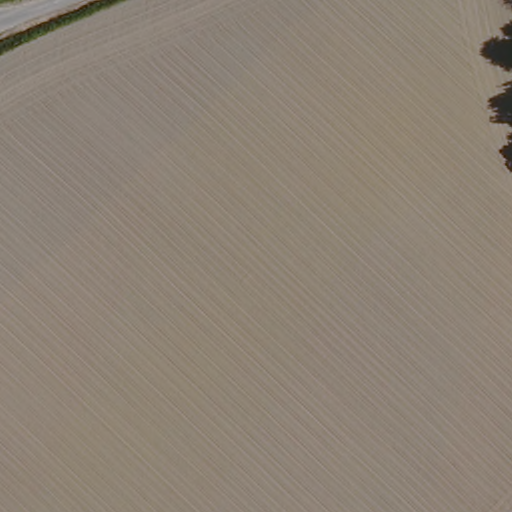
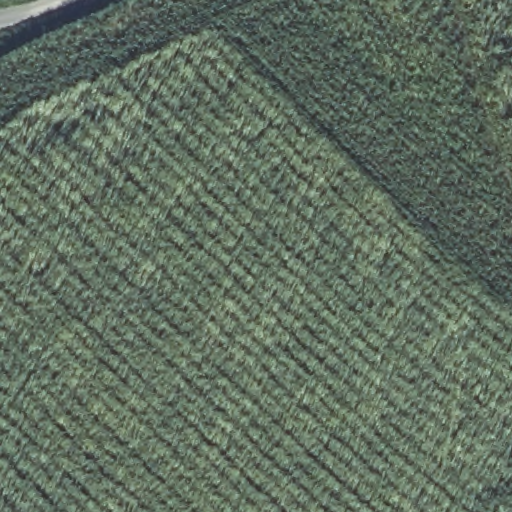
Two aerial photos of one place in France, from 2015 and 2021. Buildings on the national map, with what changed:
[]

